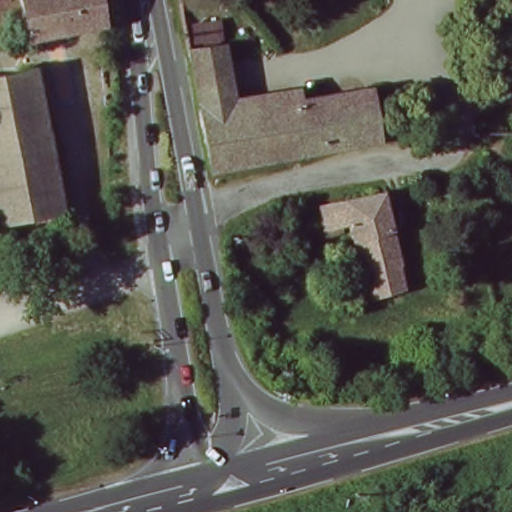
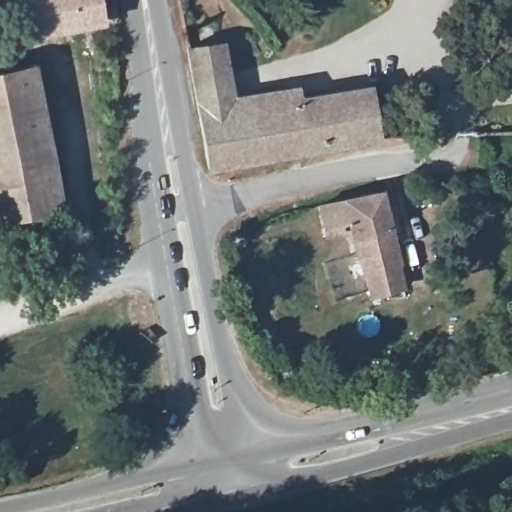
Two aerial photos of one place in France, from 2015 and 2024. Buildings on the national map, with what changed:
unchanged [(17,21),(0,24),(0,0),(90,0),(94,23),(21,36),(17,21)]
unchanged [(358,149),(304,158),(266,165),(232,170),(209,174),(203,139),(200,123),(194,90),(189,53),(209,50),(210,50),(209,44),(219,42),(219,49),(223,48),(232,101),(256,99),(259,107),(290,104),(331,98),(367,92),(372,120),(377,146),(358,149)]
unchanged [(30,70),(57,207),(0,216),(0,76),(30,70)]
unchanged [(384,291),(373,294),(366,277),(354,245),(345,222),(326,225),(319,202),(335,200),(370,194),(378,194),(394,250),(399,267),(395,268),(402,285),(384,291)]

